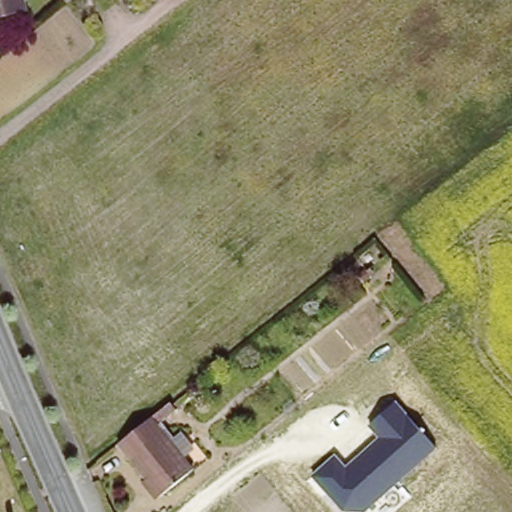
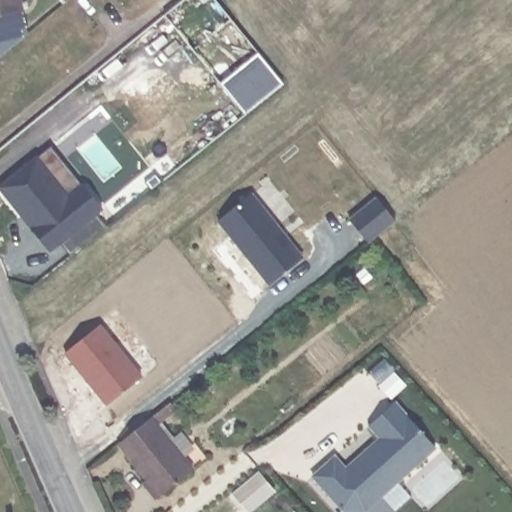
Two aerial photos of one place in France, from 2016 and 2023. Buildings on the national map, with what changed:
unchanged [(25,10),(0,15),(0,0),(23,0),(25,10)]
unchanged [(66,2),(64,0),(68,0),(66,2)]
new [(25,10),(29,34),(0,57),(0,15),(25,10)]
new [(61,243),(50,252),(0,188),(51,147),(104,209),(97,215),(105,226),(71,255),(61,243)]
new [(249,197),(300,261),(267,288),(215,223),(249,197)]
new [(375,200),(393,223),(366,245),(347,222),(375,200)]
new [(95,329),(137,381),(102,409),(61,356),(95,329)]
unchanged [(341,510),(309,470),(334,452),(346,467),(379,438),(366,421),(398,400),(437,447),(367,511),(341,510)]
unchanged [(155,419),(196,471),(144,512),(138,505),(157,490),(122,445),(155,419)]

